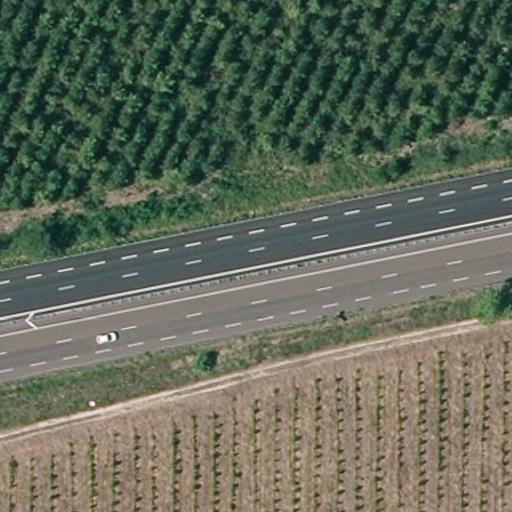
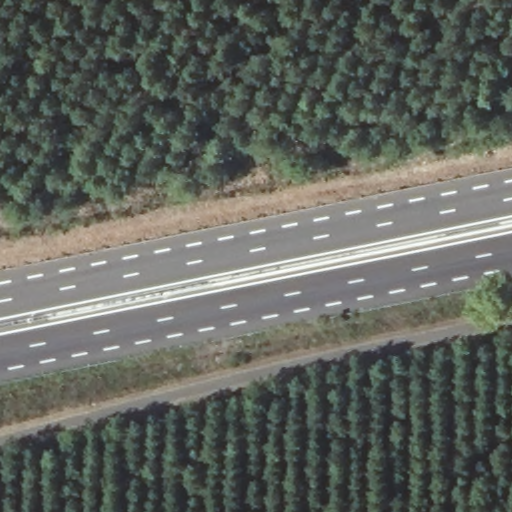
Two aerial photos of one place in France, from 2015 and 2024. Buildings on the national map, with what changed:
[]

